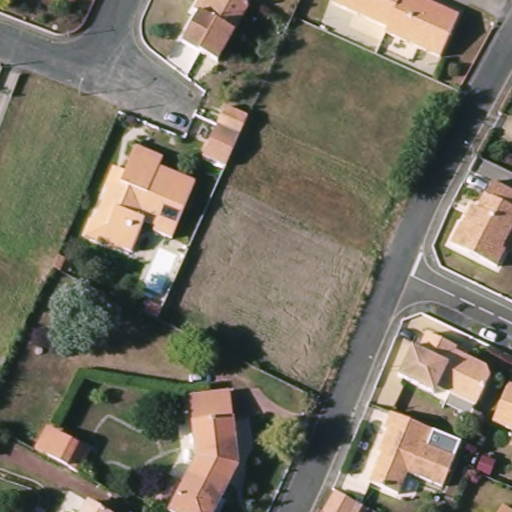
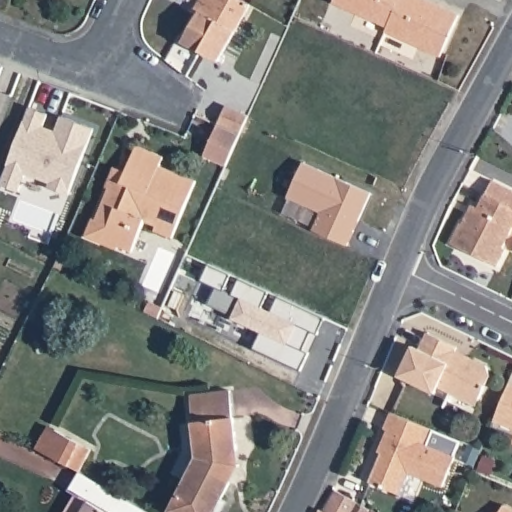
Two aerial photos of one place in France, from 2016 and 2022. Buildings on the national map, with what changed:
unchanged [(220,62),(187,43),(204,13),(199,11),(204,0),(247,0),(254,4),(220,62)]
unchanged [(423,3),(440,11),(443,5),(463,14),(443,55),(390,29),(391,25),(339,0),(425,0),(423,3)]
new [(0,185),(30,108),(48,115),(44,127),(56,131),(60,117),(94,129),(70,195),(48,188),(50,184),(25,175),(19,192),(0,185)]
unchanged [(202,160),(216,129),(225,111),(247,121),(246,122),(239,139),(225,170),(202,160)]
unchanged [(90,219),(95,221),(114,177),(110,176),(114,167),(126,172),(137,146),(165,158),(161,166),(195,182),(172,237),(155,230),(157,225),(144,219),(131,251),(102,238),(86,231),(90,219)]
new [(314,231),(321,214),(287,197),(303,165),(370,195),(348,246),(314,231)]
unchanged [(505,249),(497,267),(450,244),(460,224),(461,225),(471,205),(477,208),(485,194),(492,181),(512,190),(512,228),(502,247),(505,249)]
unchanged [(156,317),(144,310),(149,300),(161,307),(156,317)]
unchanged [(450,398),(436,392),(433,397),(397,381),(412,351),(418,354),(426,337),(456,352),(454,356),(485,371),(489,381),(477,405),(475,410),(450,398)]
unchanged [(492,421),(510,385),(512,386),(512,431),(492,421)]
unchanged [(195,395),(235,391),(241,457),(230,479),(236,483),(221,512),(177,512),(175,511),(202,457),(195,395)]
unchanged [(435,436),(428,451),(455,462),(443,492),(408,477),(399,499),(370,487),(382,458),(380,457),(388,436),(385,434),(391,418),(435,436)]
unchanged [(80,475),(71,470),(66,467),(49,458),(41,454),(55,431),(62,435),(92,452),(80,475)]
unchanged [(477,469),(482,457),(493,461),(488,473),(477,469)]
unchanged [(366,512),(324,512),(335,493),(366,512)]
unchanged [(100,512),(85,512),(89,506),(100,512)]
unchanged [(508,512),(501,512),(503,509),(508,512)]

